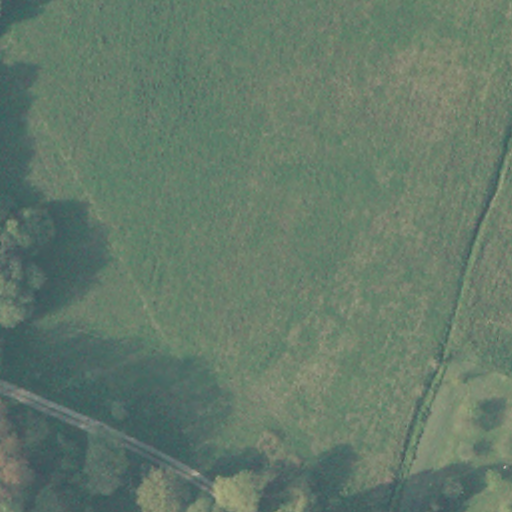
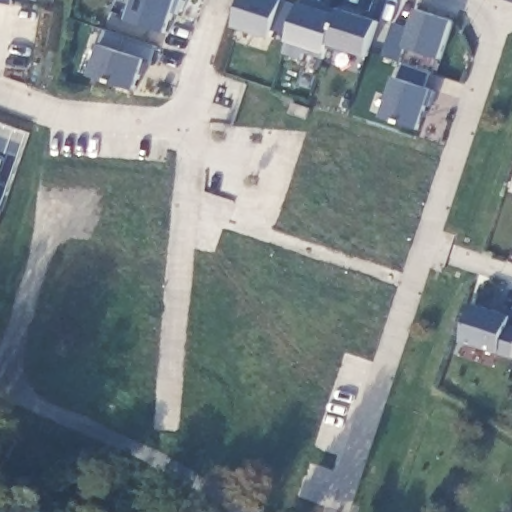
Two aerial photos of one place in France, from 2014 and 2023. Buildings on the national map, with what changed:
new [(0,0),(13,0),(13,2),(0,0)]
new [(173,14),(166,33),(129,19),(135,0),(185,0),(180,17),(173,14)]
new [(328,44),(322,59),(303,53),(302,60),(283,54),(288,35),(272,30),(270,39),(234,27),(243,0),(285,0),(299,5),(300,2),(339,12),(341,8),(378,20),(366,57),(328,44)]
new [(393,22),(410,27),(415,8),(453,19),(440,57),(404,46),(399,60),(382,55),(393,22)]
new [(100,44),(105,29),(157,47),(151,64),(145,62),(136,91),(90,75),(100,44)]
new [(418,129),(380,117),(395,77),(399,78),(404,64),(431,72),(425,87),(433,91),(418,129)]
new [(474,303),(512,316),(512,318),(508,330),(512,331),(512,357),(460,342),(474,303)]

